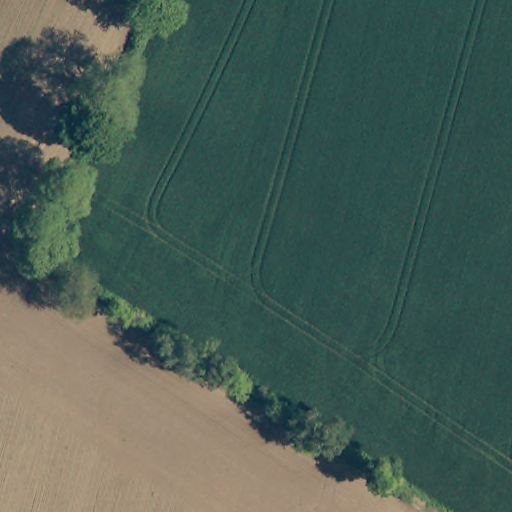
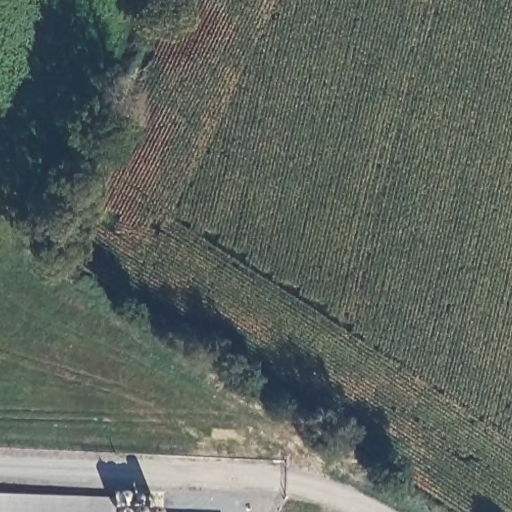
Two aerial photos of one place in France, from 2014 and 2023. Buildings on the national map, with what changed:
new [(112,498),(112,512),(0,512),(0,494),(112,498)]

